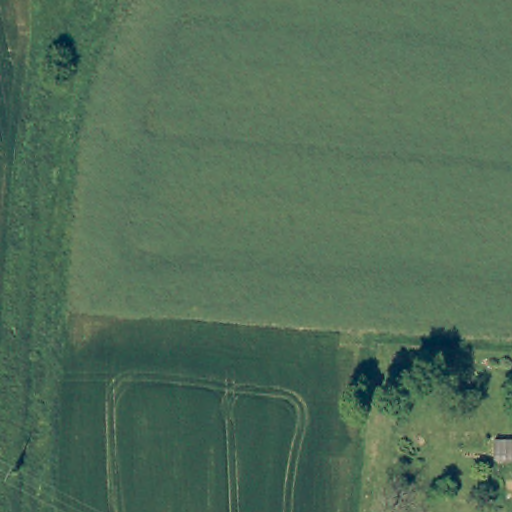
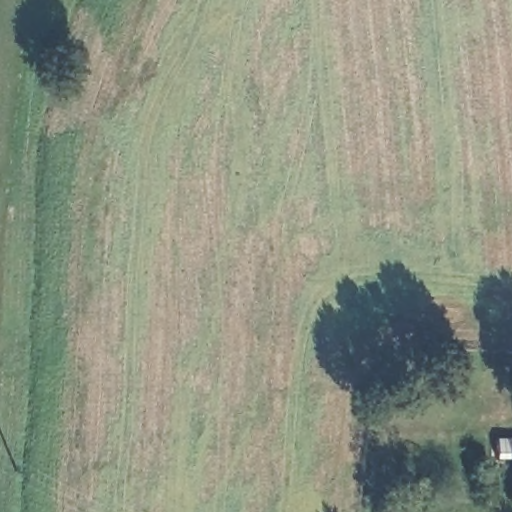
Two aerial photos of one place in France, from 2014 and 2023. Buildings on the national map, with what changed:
unchanged [(493,467),(492,445),(512,445),(512,467),(493,467)]

